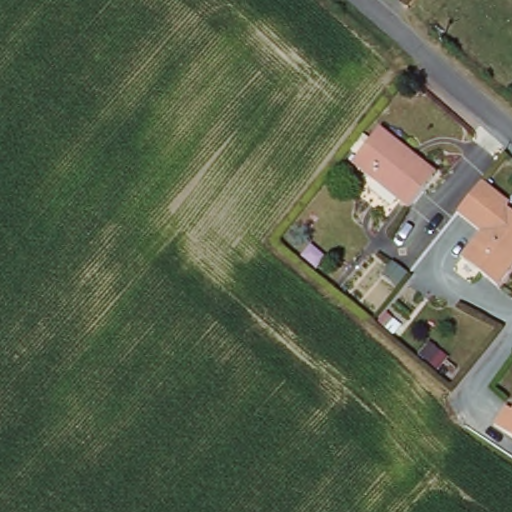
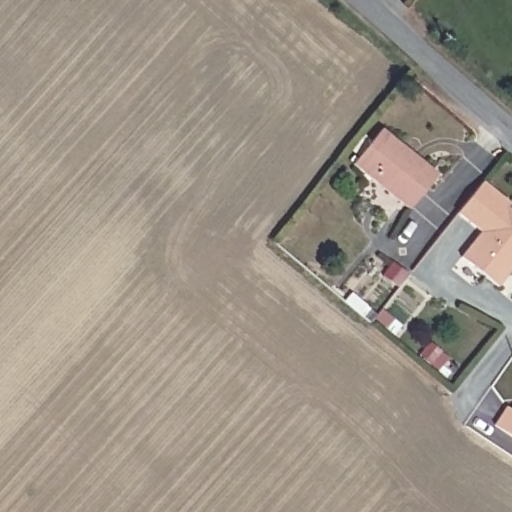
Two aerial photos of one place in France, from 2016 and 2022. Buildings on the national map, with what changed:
unchanged [(352,168),(381,132),(410,157),(437,180),(434,185),(408,215),(352,168)]
unchanged [(503,206),(512,213),(512,267),(495,287),(459,258),(478,233),(453,214),(481,181),(506,200),(503,206)]
unchanged [(501,430),(511,415),(504,410),(512,399),(512,441),(499,432),(501,430)]

